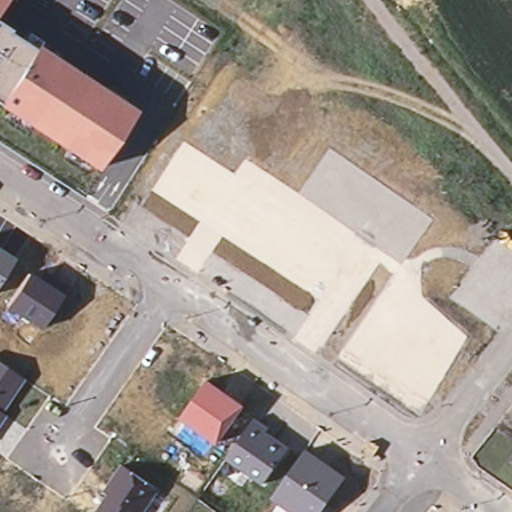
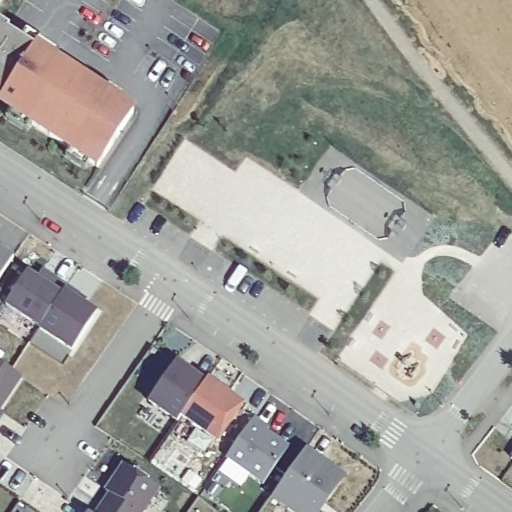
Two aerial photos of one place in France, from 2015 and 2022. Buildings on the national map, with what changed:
unchanged [(0,10),(0,0),(6,0),(0,10)]
unchanged [(10,30),(9,33),(34,49),(37,45),(135,110),(96,171),(0,107),(0,23),(10,30)]
unchanged [(15,258),(0,282),(0,248),(15,258)]
unchanged [(65,292),(40,331),(2,308),(28,270),(65,292)]
new [(98,314),(73,352),(40,331),(65,292),(98,314)]
unchanged [(26,379),(4,412),(6,414),(0,425),(0,360),(26,379)]
new [(180,420),(150,400),(176,361),(206,381),(180,420)]
unchanged [(246,403),(218,445),(180,420),(208,378),(246,403)]
unchanged [(272,427),(268,432),(290,447),(263,487),(224,459),(255,417),(272,427)]
unchanged [(324,512),(290,512),(270,498),(307,446),(350,474),(324,512)]
unchanged [(512,452),(512,458),(509,456),(512,452)]
unchanged [(145,512),(96,512),(108,493),(105,490),(122,462),(161,488),(145,512)]

